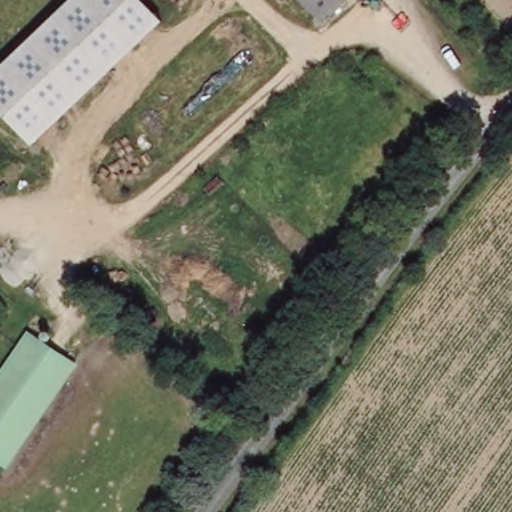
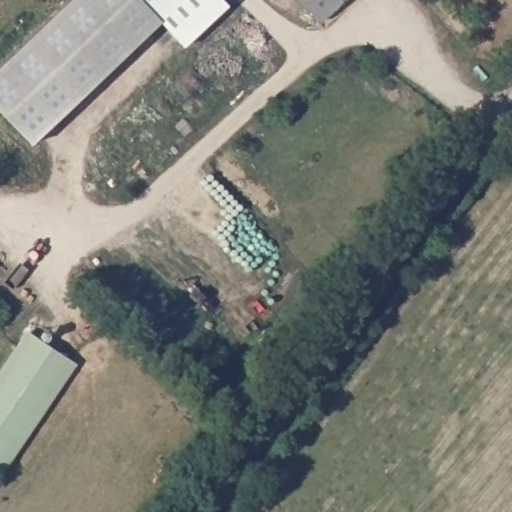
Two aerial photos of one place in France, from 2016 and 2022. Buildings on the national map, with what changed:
unchanged [(0,111),(0,65),(69,0),(142,0),(162,22),(32,144),(0,111)]
new [(230,6),(186,47),(162,22),(142,0),(224,0),(230,6)]
unchanged [(322,21),(301,0),(344,0),(322,21)]
unchanged [(76,364),(2,465),(0,464),(0,391),(38,337),(76,364)]

